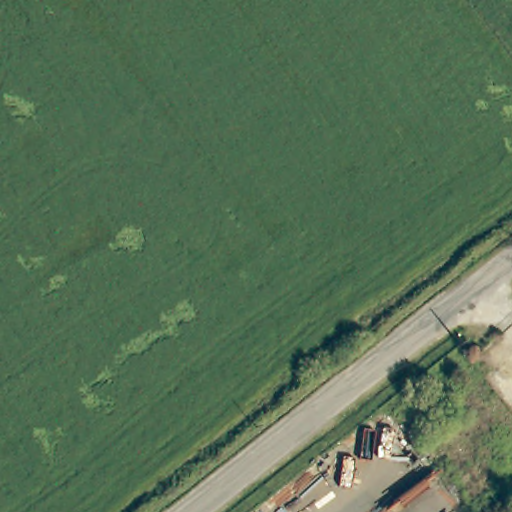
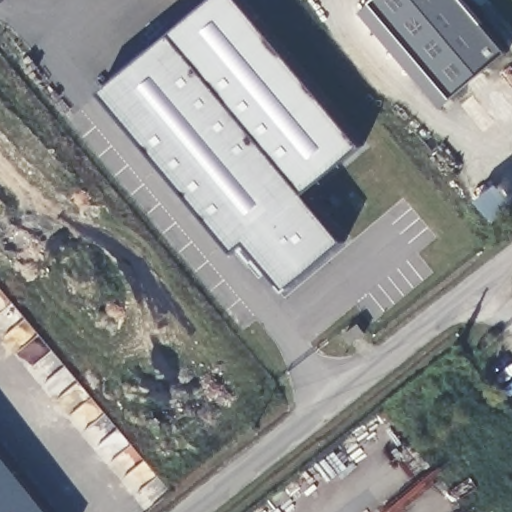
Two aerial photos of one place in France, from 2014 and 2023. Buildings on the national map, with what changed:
new [(441,109),(359,14),(373,3),(376,0),(464,0),(508,51),(453,99),(441,109)]
new [(286,291),(245,243),(235,252),(101,93),(173,33),(345,241),(286,291)]
new [(360,325),(366,332),(352,344),(345,336),(360,325)]
new [(0,452),(47,512),(0,512),(0,452)]

